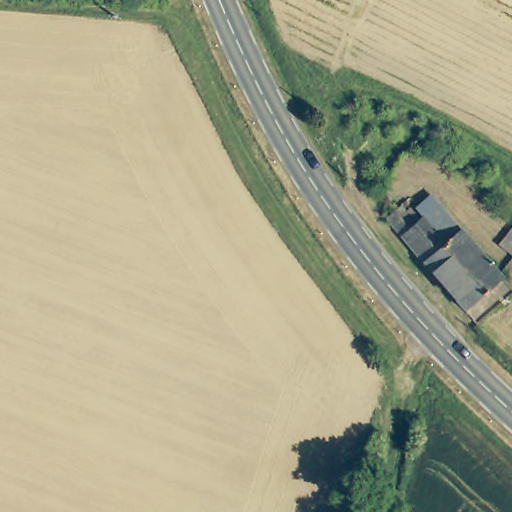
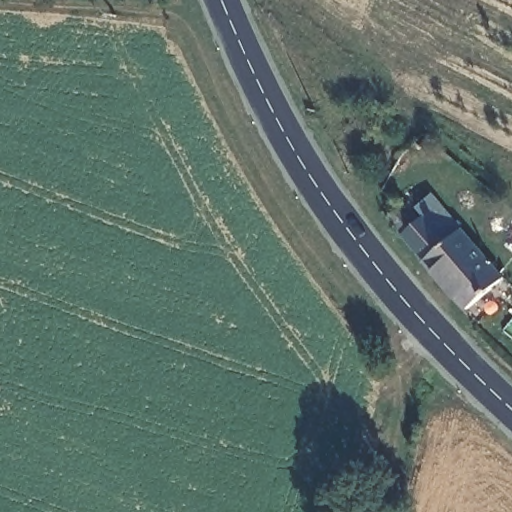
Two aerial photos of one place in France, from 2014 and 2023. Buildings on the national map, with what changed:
unchanged [(464,310),(388,213),(404,203),(415,219),(429,211),(422,201),(432,194),(500,279),(464,310)]
unchanged [(510,219),(512,220),(512,242),(507,252),(497,247),(510,219)]

